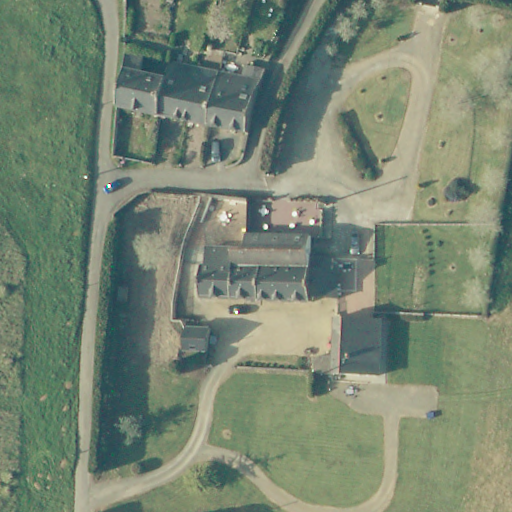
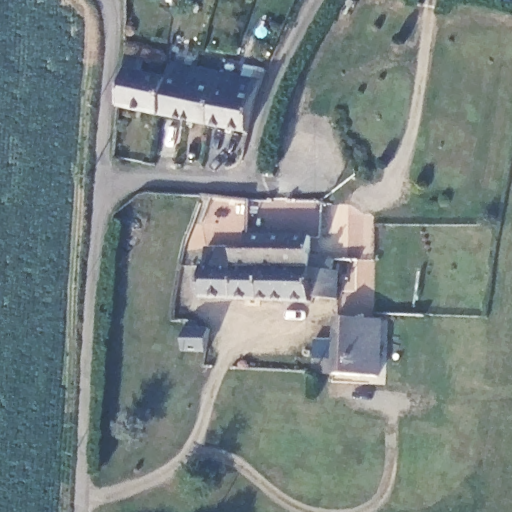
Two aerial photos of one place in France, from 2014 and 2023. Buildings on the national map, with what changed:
unchanged [(155,115),(114,106),(122,70),(122,50),(141,54),(138,72),(164,78),(155,115)]
unchanged [(185,101),(181,119),(181,120),(155,115),(164,78),(168,60),(193,66),(185,101)]
unchanged [(245,134),(206,125),(206,122),(217,71),(240,76),(243,64),(253,66),(263,69),(258,80),(255,94),(245,134)]
unchanged [(217,71),(206,122),(206,125),(181,120),(181,119),(185,101),(193,66),(217,71)]
unchanged [(325,206),(323,239),(315,240),(249,238),(250,203),(266,204),(325,206)]
unchanged [(314,271),(340,274),(338,303),(314,302),(313,305),(202,301),(203,270),(207,270),(208,252),(248,253),(249,238),(315,240),(314,271)]
unchanged [(311,372),(311,356),(333,357),(335,317),(379,318),(377,376),(311,372)]
unchanged [(179,351),(182,327),(207,328),(204,352),(200,352),(179,351)]

